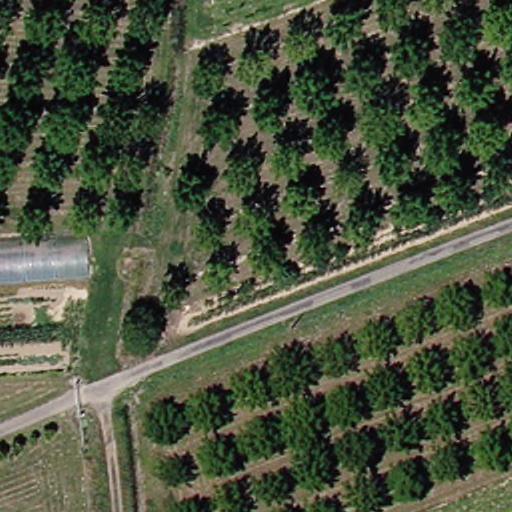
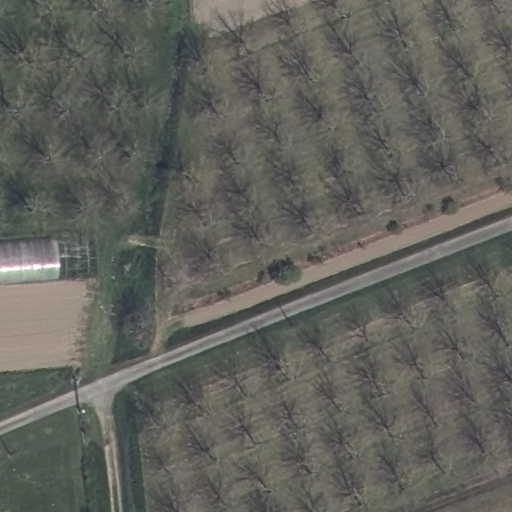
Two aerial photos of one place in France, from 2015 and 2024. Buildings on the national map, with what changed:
unchanged [(86,238),(90,276),(0,282),(0,244),(86,238)]

